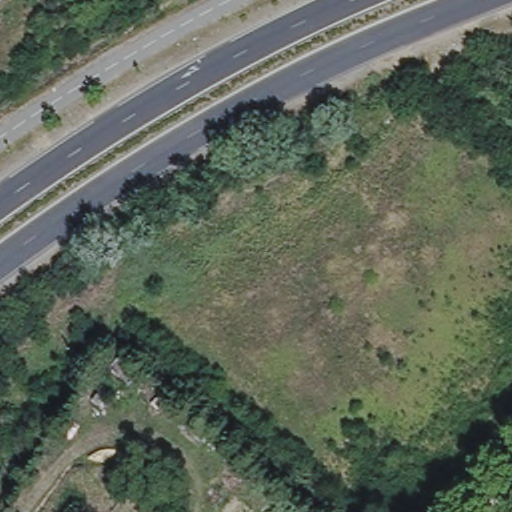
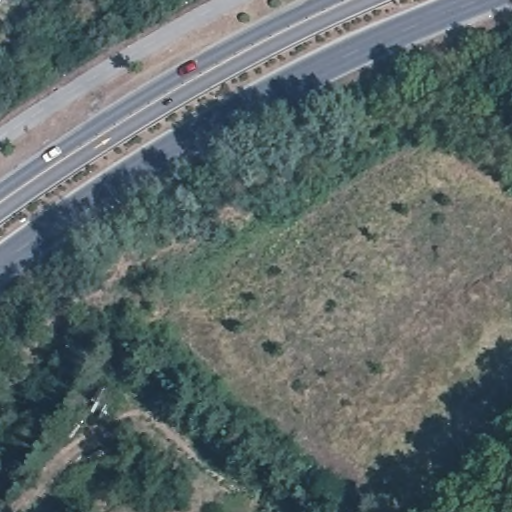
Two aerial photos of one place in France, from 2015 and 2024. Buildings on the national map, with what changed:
unchanged [(143,371),(132,384),(111,367),(124,353),(143,371)]

